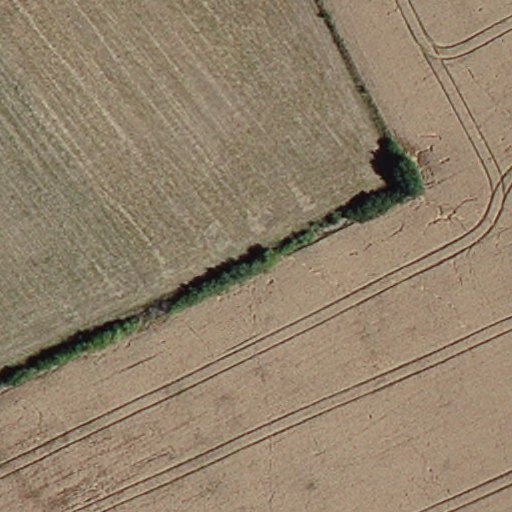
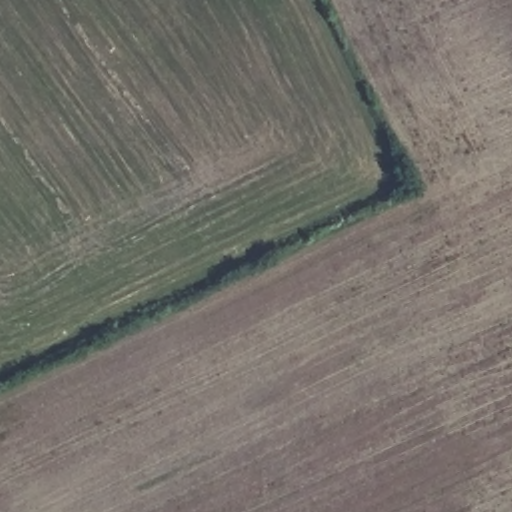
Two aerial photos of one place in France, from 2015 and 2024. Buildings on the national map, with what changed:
[]

